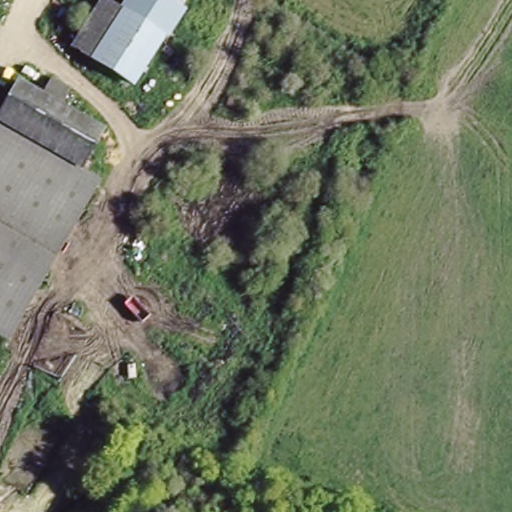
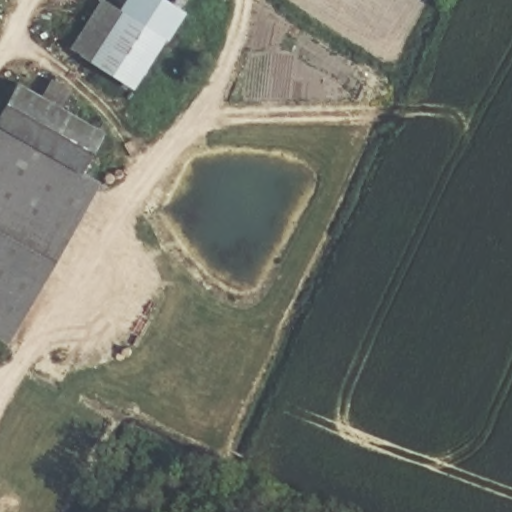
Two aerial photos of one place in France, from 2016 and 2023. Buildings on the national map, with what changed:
unchanged [(94,55),(61,36),(84,0),(89,0),(118,17),(94,55)]
unchanged [(129,76),(100,60),(94,55),(118,17),(129,0),(158,0),(171,7),(129,76)]
unchanged [(206,28),(197,43),(180,33),(146,86),(129,76),(171,7),(206,28)]
unchanged [(0,117),(18,87),(98,134),(75,170),(0,128),(0,117)]
unchanged [(98,184),(28,300),(13,291),(0,312),(0,128),(75,170),(98,184)]

